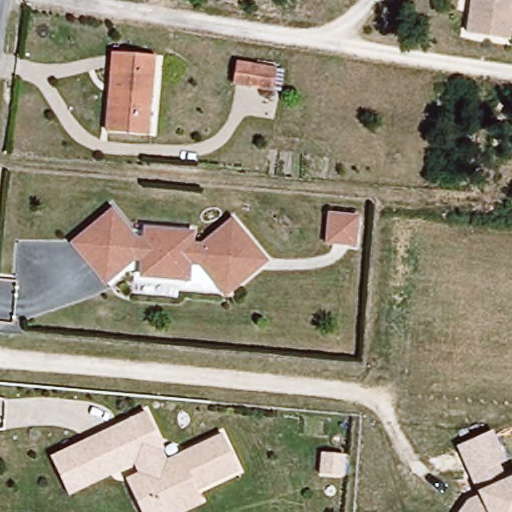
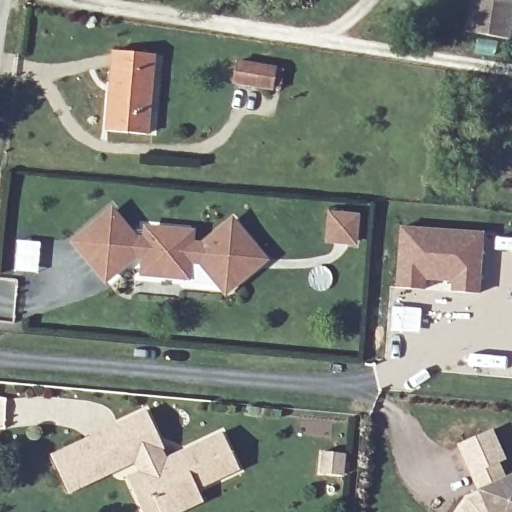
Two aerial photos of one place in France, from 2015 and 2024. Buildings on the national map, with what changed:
unchanged [(511,44),(464,37),(469,0),(512,0),(512,32),(511,44)]
unchanged [(148,133),(107,129),(112,59),(153,61),(148,133)]
unchanged [(271,92),(233,89),(235,66),(273,69),(271,92)]
unchanged [(115,218),(138,247),(149,247),(150,236),(194,240),(192,252),(205,253),(236,228),(267,267),(228,298),(204,268),(191,267),(190,284),(146,280),(147,263),(137,262),(108,287),(77,249),(115,218)]
unchanged [(355,224),(353,249),(328,247),(331,222),(355,224)]
new [(398,225),(485,232),(480,292),(449,291),(450,282),(427,282),(426,289),(392,286),(398,225)]
new [(391,305),(422,307),(420,333),(389,331),(391,305)]
unchanged [(196,495),(202,507),(191,512),(137,512),(126,480),(139,475),(135,465),(66,500),(47,460),(145,413),(167,464),(222,437),(237,474),(196,495)]
unchanged [(506,458),(502,461),(508,477),(512,475),(512,512),(455,512),(466,497),(478,491),(458,444),(493,428),(506,458)]

